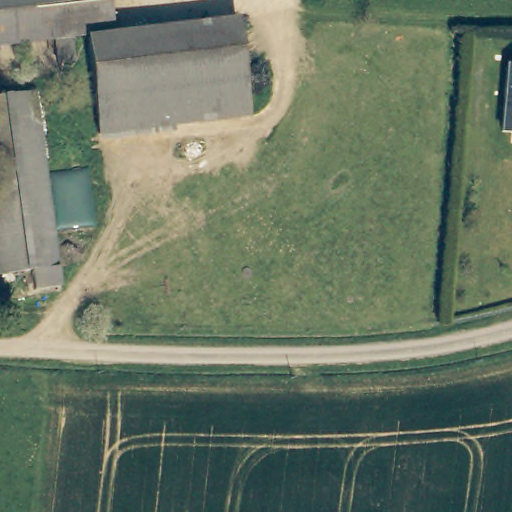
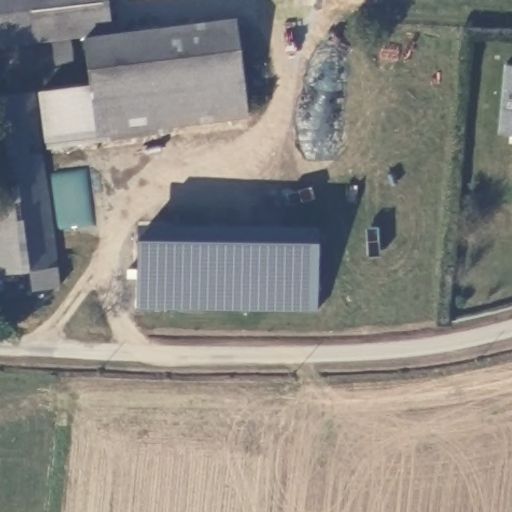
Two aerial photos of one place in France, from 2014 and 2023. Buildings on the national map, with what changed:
unchanged [(113,34),(84,36),(69,38),(71,62),(52,65),(50,40),(0,46),(0,0),(109,0),(113,34)]
unchanged [(95,130),(84,36),(113,34),(240,20),(244,59),(250,113),(240,114),(95,130)]
unchanged [(512,63),(512,133),(507,133),(508,62),(512,63)]
new [(95,130),(97,141),(46,148),(44,139),(37,87),(90,81),(95,130)]
unchanged [(60,287),(36,290),(33,268),(0,272),(0,95),(35,90),(60,287)]
new [(140,222),(320,225),(319,310),(137,307),(140,222)]

